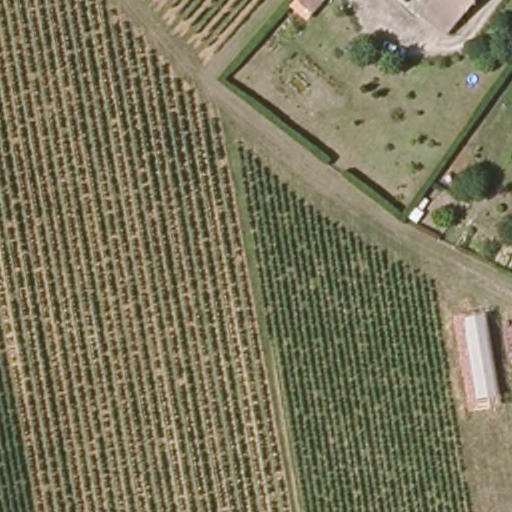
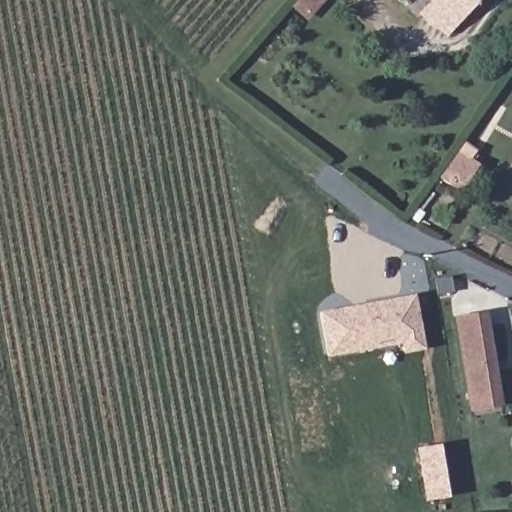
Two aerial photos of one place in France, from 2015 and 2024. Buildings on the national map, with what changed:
unchanged [(421,6),(427,0),(473,0),(448,30),(421,6)]
new [(425,349),(401,354),(400,344),(326,358),(318,312),(414,294),(425,349)]
unchanged [(470,412),(455,317),(485,312),(501,407),(470,412)]
new [(440,444),(449,499),(423,501),(416,447),(440,444)]

